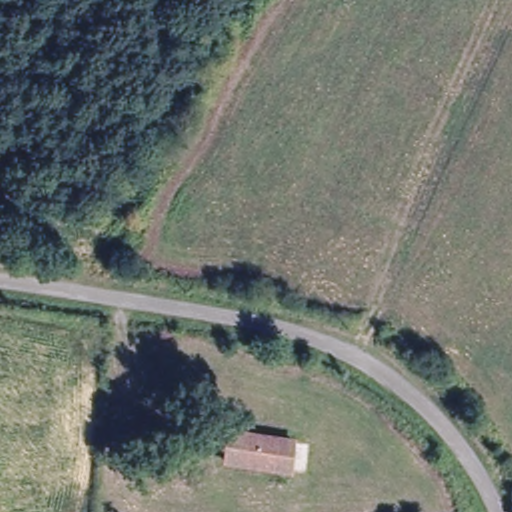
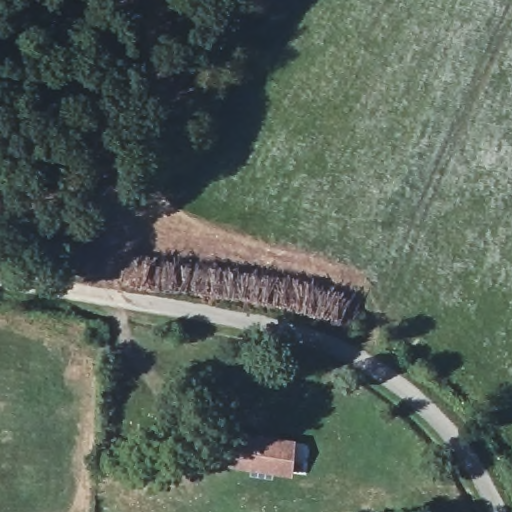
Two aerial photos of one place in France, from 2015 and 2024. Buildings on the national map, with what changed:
unchanged [(229,412),(296,422),(288,476),(222,468),(229,412)]

